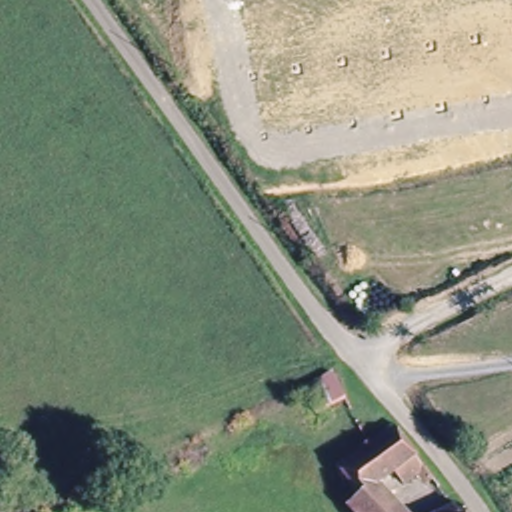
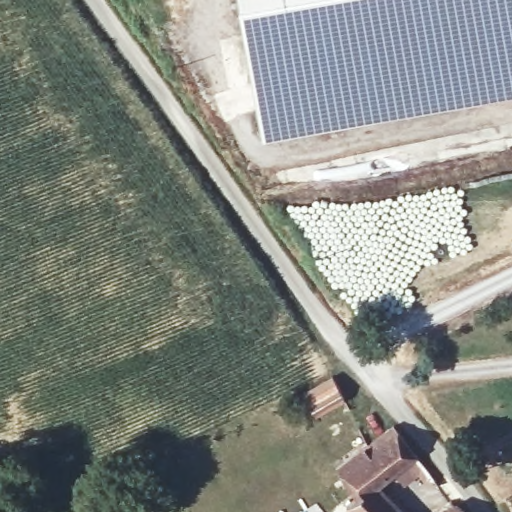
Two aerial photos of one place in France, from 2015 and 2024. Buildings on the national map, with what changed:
new [(239,0),(512,0),(512,98),(264,141),(239,0)]
unchanged [(345,503),(356,494),(333,465),(389,421),(414,449),(377,478),(407,512),(352,512),(345,503)]
unchanged [(448,506),(457,501),(463,512),(435,512),(448,506)]

